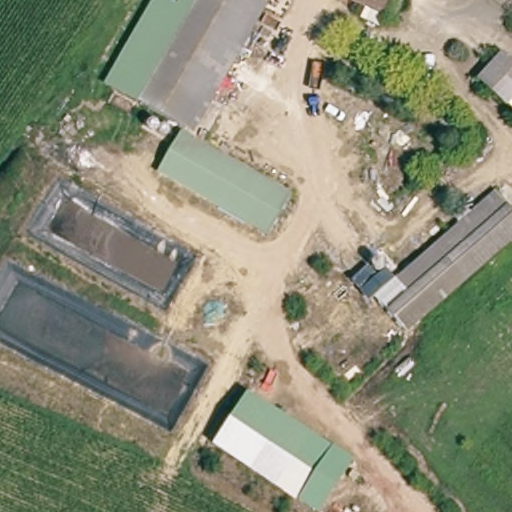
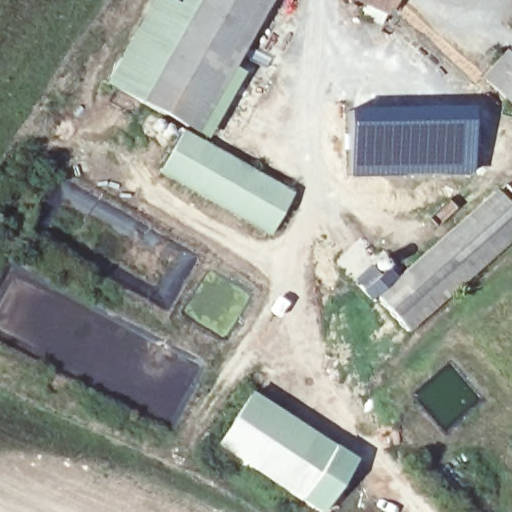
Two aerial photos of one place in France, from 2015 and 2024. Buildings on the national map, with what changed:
unchanged [(104,83),(154,0),(172,0),(178,3),(180,0),(196,0),(139,101),(104,83)]
unchanged [(267,1),(195,132),(181,124),(139,101),(196,0),(266,0),(267,1)]
unchanged [(390,17),(353,0),(398,0),(390,17)]
unchanged [(499,49),(512,59),(512,111),(475,78),(499,49)]
new [(469,106),(469,176),(347,178),(346,110),(469,106)]
unchanged [(156,173),(181,124),(195,132),(292,191),(267,237),(156,173)]
unchanged [(432,219),(456,197),(469,209),(492,189),(512,210),(512,237),(405,331),(369,295),(443,233),(432,219)]
unchanged [(249,391),(314,433),(275,486),(214,446),(249,391)]
new [(320,512),(317,512),(275,486),(314,433),(356,458),(320,512)]

